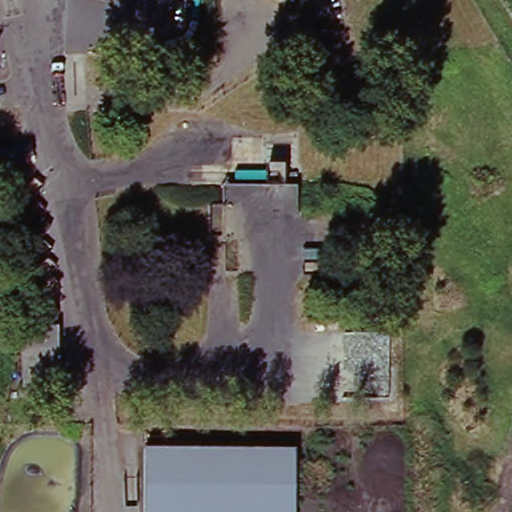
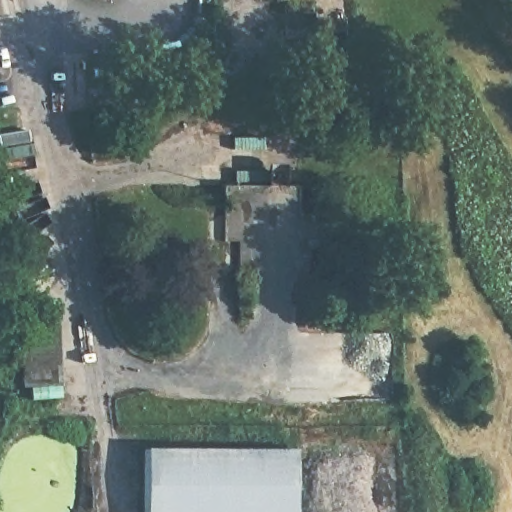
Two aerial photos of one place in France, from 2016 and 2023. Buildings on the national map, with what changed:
unchanged [(3,59),(0,60),(0,50),(1,50),(3,59)]
unchanged [(298,266),(225,265),(227,239),(206,234),(209,204),(223,204),(227,180),(300,187),(298,266)]
unchanged [(24,327),(59,326),(58,349),(59,326),(61,326),(63,389),(26,388),(25,350),(24,327)]
unchanged [(300,449),(297,512),(145,512),(148,447),(300,449)]

